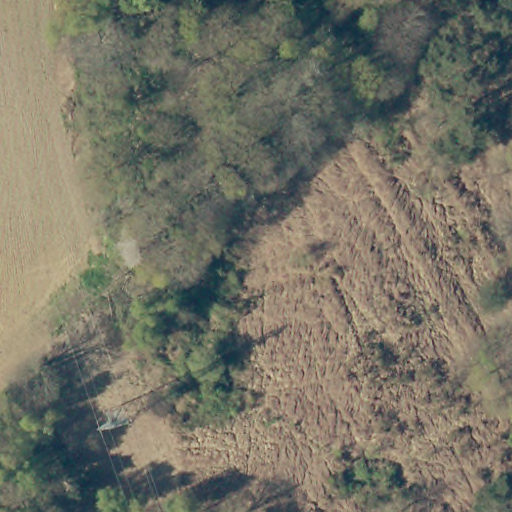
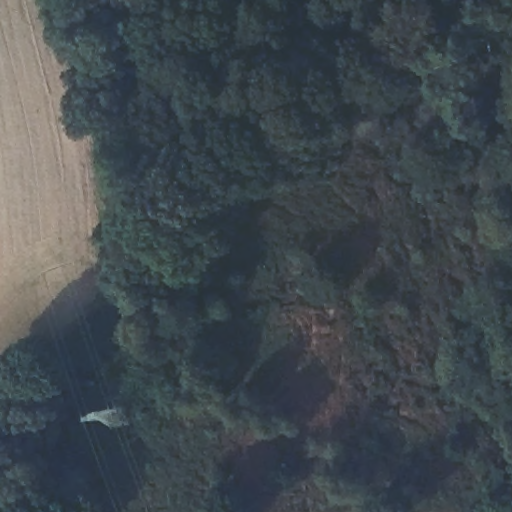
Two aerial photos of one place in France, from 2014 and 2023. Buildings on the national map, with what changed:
[]

